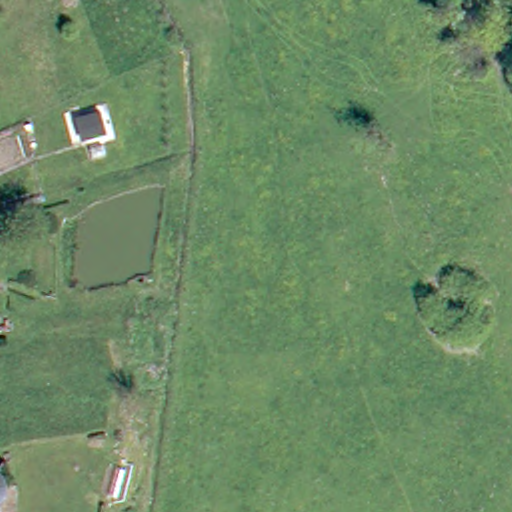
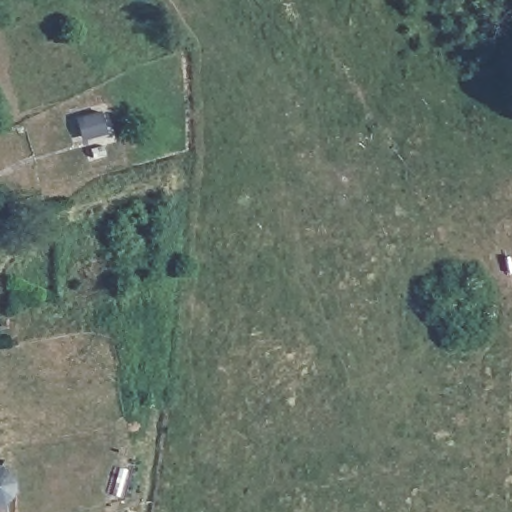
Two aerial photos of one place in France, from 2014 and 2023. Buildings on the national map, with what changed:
unchanged [(10,465),(18,460),(20,464),(12,469),(15,482),(25,483),(24,488),(15,486),(7,499),(10,512),(0,512),(0,465),(10,465)]

